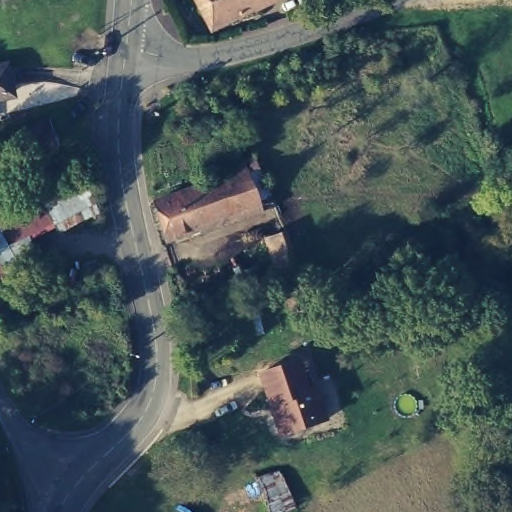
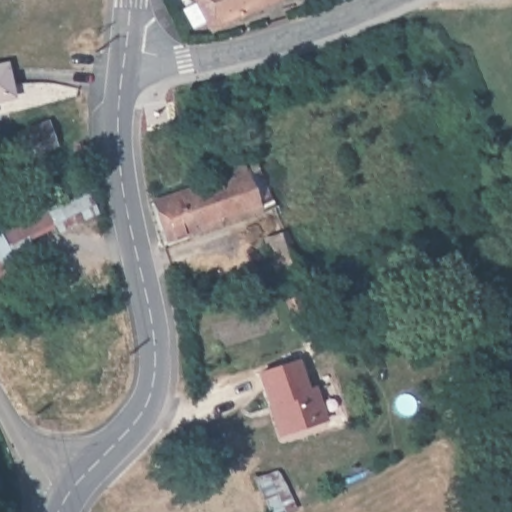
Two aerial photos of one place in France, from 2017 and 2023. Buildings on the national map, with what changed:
unchanged [(209,31),(195,0),(270,0),(209,31)]
unchanged [(10,95),(0,98),(0,70),(4,69),(10,95)]
unchanged [(61,143),(40,154),(30,134),(53,123),(61,143)]
unchanged [(276,197),(263,204),(268,215),(170,249),(153,202),(209,184),(205,173),(257,155),(276,197)]
unchanged [(88,180),(104,204),(61,227),(46,200),(88,180)]
unchanged [(293,230),(307,271),(279,282),(264,239),(293,230)]
unchanged [(267,413),(254,380),(295,365),(302,391),(310,392),(322,423),(280,438),(277,440),(267,413)]

